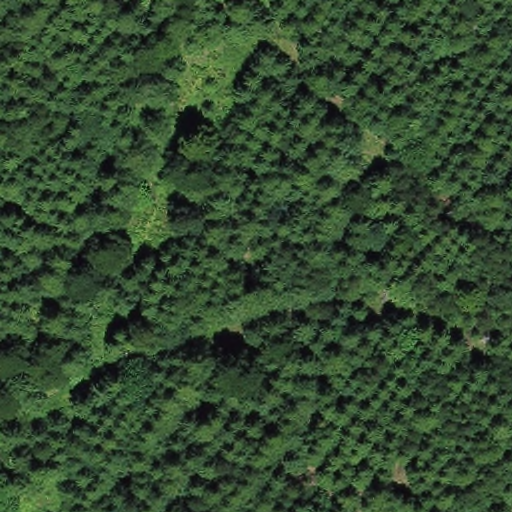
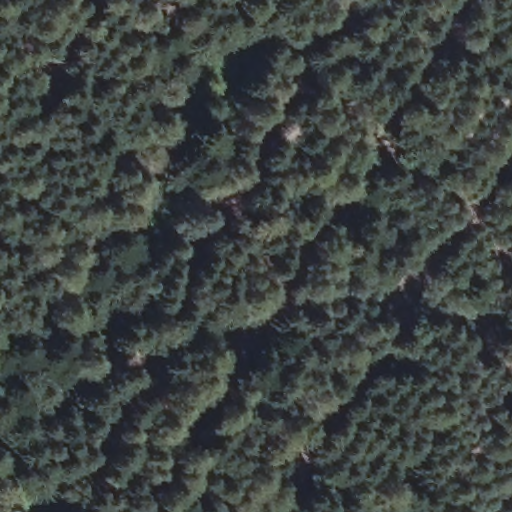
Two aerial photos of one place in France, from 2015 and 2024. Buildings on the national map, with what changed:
[]

